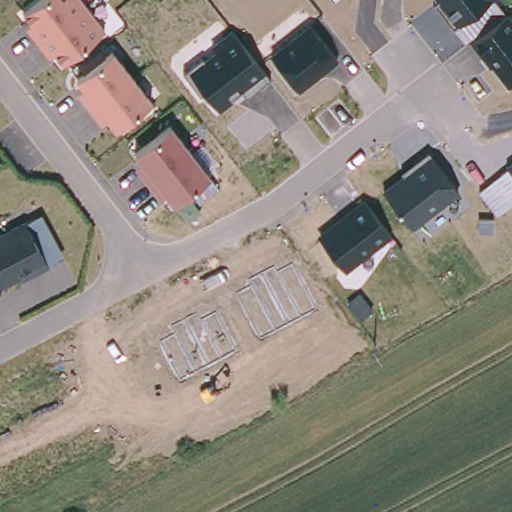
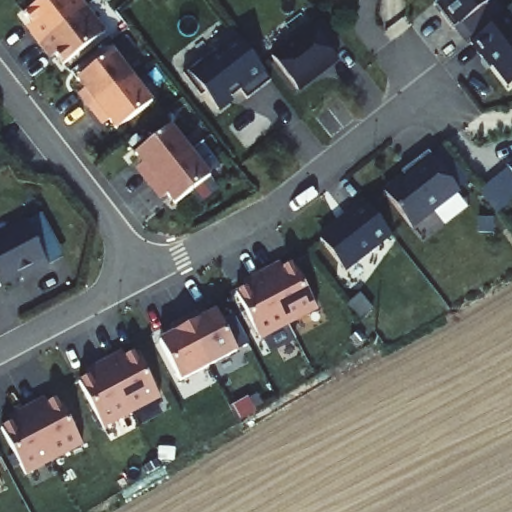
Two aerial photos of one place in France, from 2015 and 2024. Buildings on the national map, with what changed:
unchanged [(26,29),(32,23),(26,14),(44,0),(80,0),(106,32),(63,65),(56,55),(49,60),(26,29)]
unchanged [(470,42),(465,46),(453,30),(434,5),(437,1),(436,0),(493,0),(507,16),(512,23),(512,84),(508,87),(493,68),(489,70),(470,42)]
unchanged [(340,62),(299,93),(271,55),(311,24),(340,62)]
unchanged [(211,48),(233,32),(265,74),(270,81),(247,99),(241,90),(230,98),(233,102),(219,114),(206,94),(200,96),(185,76),(189,72),(215,54),(211,48)]
unchanged [(85,90),(77,80),(114,51),(153,102),(116,130),(109,120),(101,126),(79,96),(85,90)]
unchanged [(143,163),(136,155),(173,126),(211,177),(173,205),(166,195),(159,200),(136,170),(143,163)]
new [(471,182),(459,191),(431,156),(443,147),(471,182)]
unchanged [(401,172),(429,152),(432,156),(461,194),(412,230),(382,190),(404,175),(401,172)]
unchanged [(506,166),(512,161),(512,204),(496,216),(478,191),(510,170),(506,166)]
unchanged [(392,237),(346,272),(317,235),(363,201),(392,237)]
unchanged [(48,266),(33,275),(31,271),(0,287),(0,236),(24,223),(48,266)]
unchanged [(317,310),(260,339),(235,294),(250,286),(248,281),(276,265),(280,271),(293,265),(317,310)]
unchanged [(237,350),(178,381),(159,344),(175,335),(171,327),(197,312),(201,320),(217,312),(237,350)]
new [(117,356),(119,361),(135,353),(158,399),(130,414),(104,363),(117,356)]
new [(93,375),(91,370),(104,363),(130,414),(102,429),(78,383),(93,375)]
new [(39,403),(41,408),(57,400),(81,445),(52,460),(25,410),(39,403)]
new [(15,422),(12,417),(25,410),(52,460),(23,475),(0,432),(0,429),(15,422)]

